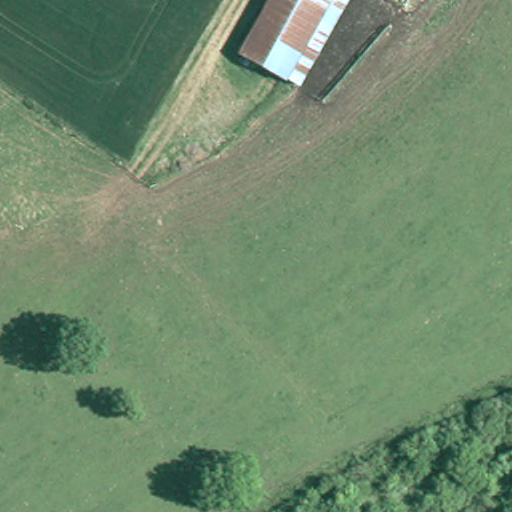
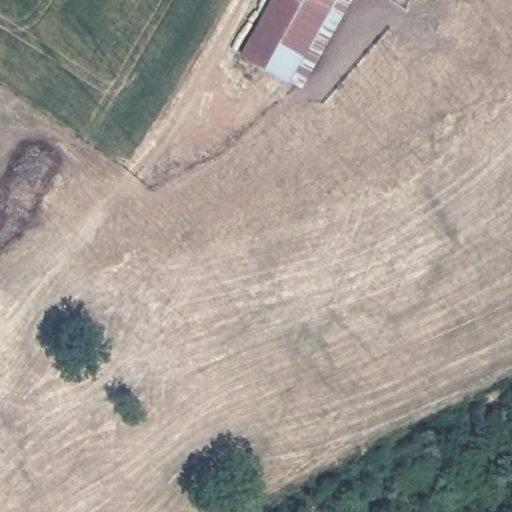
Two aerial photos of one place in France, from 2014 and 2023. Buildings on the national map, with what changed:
unchanged [(242,47),(272,0),(354,0),(302,87),(242,47)]

